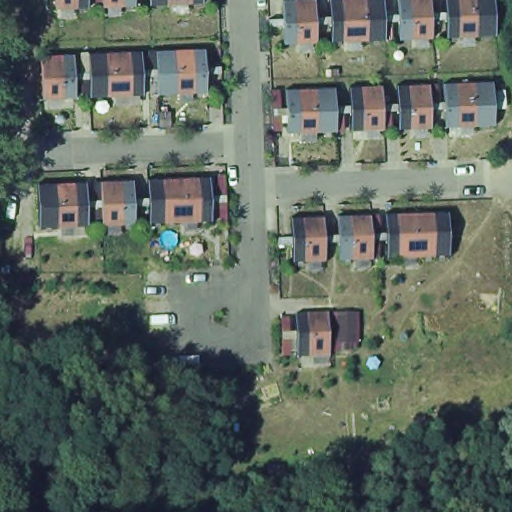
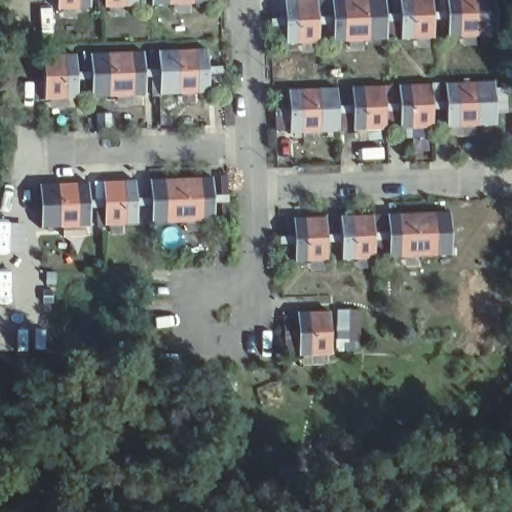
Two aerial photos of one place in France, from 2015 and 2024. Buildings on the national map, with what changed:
unchanged [(87,0),(88,7),(56,9),(56,0),(87,0)]
unchanged [(135,0),(136,4),(106,3),(105,0),(135,0)]
unchanged [(204,0),(205,2),(150,5),(149,0),(204,0)]
unchanged [(315,0),(317,41),(284,42),(284,0),(315,0)]
unchanged [(384,0),(385,40),(335,42),(332,0),(384,0)]
unchanged [(398,36),(398,0),(430,0),(432,36),(398,36)]
unchanged [(494,0),(495,34),(448,35),(447,0),(494,0)]
unchanged [(157,50),(206,49),(208,92),(157,93),(157,50)]
unchanged [(89,52),(141,51),(142,94),(92,95),(89,52)]
unchanged [(43,55),(75,52),(77,97),(45,97),(43,55)]
unchanged [(445,82),(492,80),(495,124),(446,126),(445,82)]
unchanged [(397,84),(430,82),(431,126),(399,127),(397,84)]
unchanged [(350,86),(382,87),(383,128),(352,129),(350,86)]
unchanged [(288,89),(336,88),(338,130),(289,132),(288,89)]
unchanged [(150,178),(211,177),(213,219),(151,222),(150,178)]
unchanged [(104,224),(102,181),(134,179),(135,222),(104,224)]
unchanged [(86,181),(88,225),(41,227),(38,182),(86,181)]
unchanged [(388,214),(450,212),(452,254),(389,257),(388,214)]
unchanged [(338,215),(372,214),(372,256),(340,257),(338,215)]
unchanged [(294,218),(324,217),(326,260),(295,262),(294,218)]
unchanged [(298,311),(329,310),(330,352),(300,355),(298,311)]

